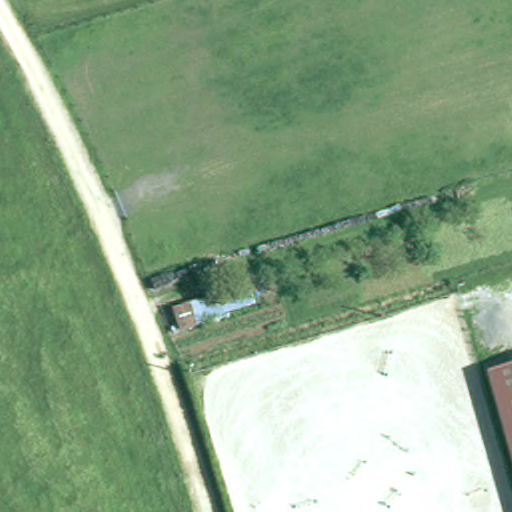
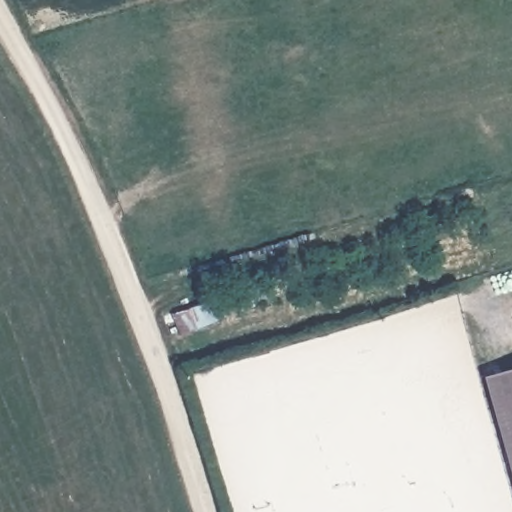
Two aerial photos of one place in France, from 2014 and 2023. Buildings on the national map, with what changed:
unchanged [(250,307),(191,326),(185,308),(243,288),(250,307)]
unchanged [(512,368),(512,470),(485,375),(512,368)]

